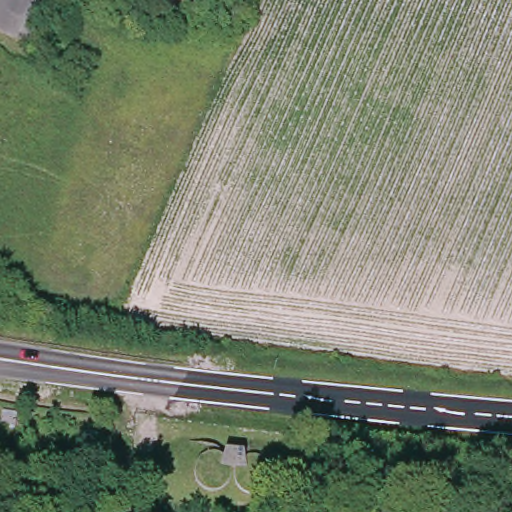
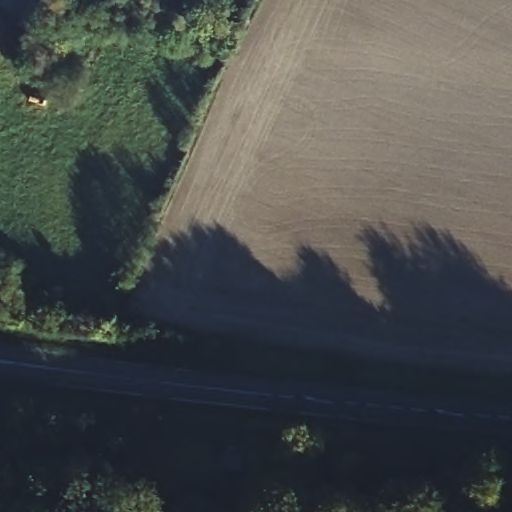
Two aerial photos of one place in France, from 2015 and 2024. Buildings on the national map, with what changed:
[]

